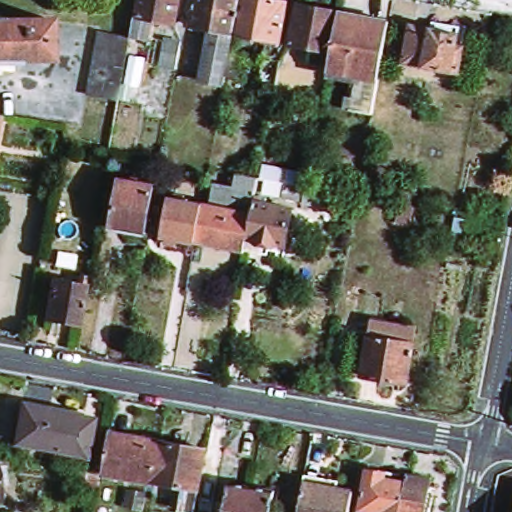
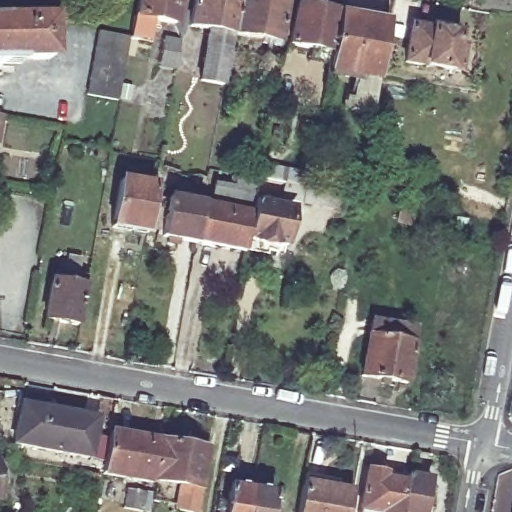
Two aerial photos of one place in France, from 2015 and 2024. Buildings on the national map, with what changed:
unchanged [(154,25),(150,48),(131,44),(138,0),(179,0),(174,29),(154,25)]
unchanged [(222,77),(221,86),(196,83),(204,30),(187,28),(192,0),(235,0),(229,36),(226,54),(240,58),(235,79),(222,77)]
unchanged [(271,45),(229,36),(235,0),(258,0),(280,4),(271,45)]
unchanged [(328,66),(310,63),(311,50),(291,46),(297,6),(338,14),(328,66)]
unchanged [(380,74),(372,115),(349,112),(355,78),(330,74),(341,14),(389,23),(380,74)]
unchanged [(0,24),(0,26),(50,25),(51,63),(20,63),(19,69),(1,69),(0,70),(0,24)]
unchanged [(460,74),(404,64),(410,28),(431,32),(430,36),(457,41),(456,50),(464,51),(460,74)]
unchanged [(176,71),(159,69),(165,39),(181,42),(176,71)]
unchanged [(120,104),(88,98),(98,40),(130,45),(120,104)]
unchanged [(276,85),(262,83),(265,59),(281,62),(276,85)]
unchanged [(259,184),(262,169),(305,176),(302,191),(313,194),(309,209),(282,204),(283,194),(258,190),(259,184)]
unchanged [(143,233),(113,226),(121,180),(152,186),(143,233)]
unchanged [(203,210),(212,213),(216,189),(232,193),(235,180),(259,184),(258,190),(256,202),(247,243),(244,257),(197,248),(203,210)]
unchanged [(415,200),(401,198),(402,188),(417,190),(415,200)]
unchanged [(293,209),(285,250),(247,243),(256,202),(293,209)]
unchanged [(173,204),(203,210),(197,248),(166,242),(173,204)]
unchanged [(403,230),(396,229),(402,204),(409,205),(403,230)]
unchanged [(76,325),(45,319),(52,282),(82,288),(76,325)]
unchanged [(414,330),(406,382),(362,375),(367,338),(370,323),(391,327),(391,332),(395,333),(396,328),(414,330)]
unchanged [(90,457),(14,443),(22,404),(97,419),(90,457)]
unchanged [(207,454),(196,512),(180,512),(183,493),(154,487),(153,489),(103,479),(110,436),(207,454)]
unchanged [(3,484),(0,484),(0,467),(1,467),(3,484)]
unchanged [(401,512),(366,512),(360,511),(366,469),(386,474),(385,478),(406,482),(401,512)]
unchanged [(350,512),(299,512),(304,483),(305,474),(341,481),(339,488),(354,491),(350,512)]
unchanged [(407,474),(429,479),(423,512),(401,512),(406,482),(407,474)]
unchanged [(94,497),(77,494),(80,478),(96,482),(94,497)]
unchanged [(272,503),(270,512),(229,512),(232,497),(251,500),(272,503)]

